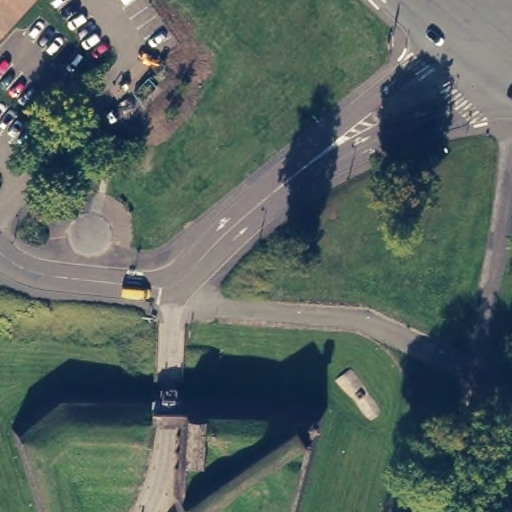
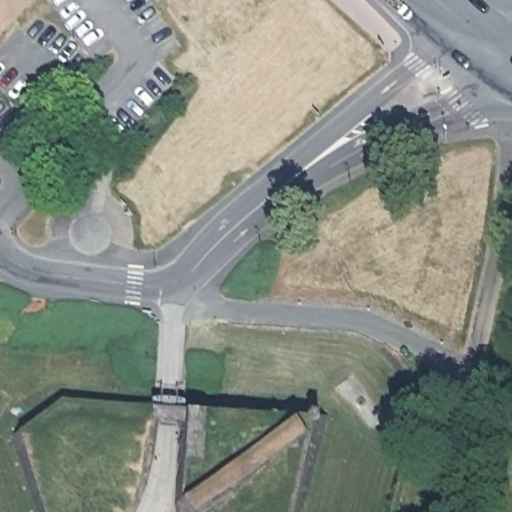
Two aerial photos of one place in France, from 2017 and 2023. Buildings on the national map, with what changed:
unchanged [(0,0),(34,0),(0,38),(0,0)]

